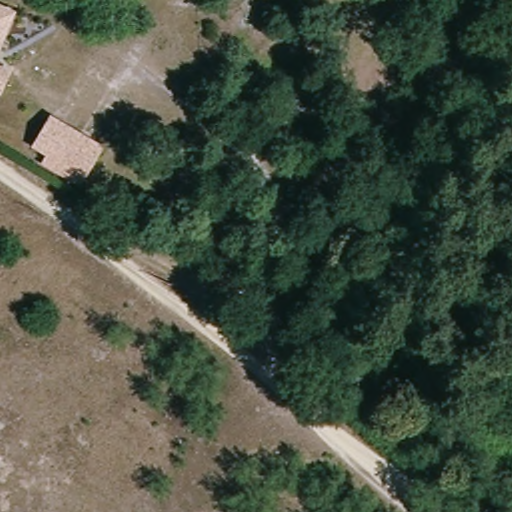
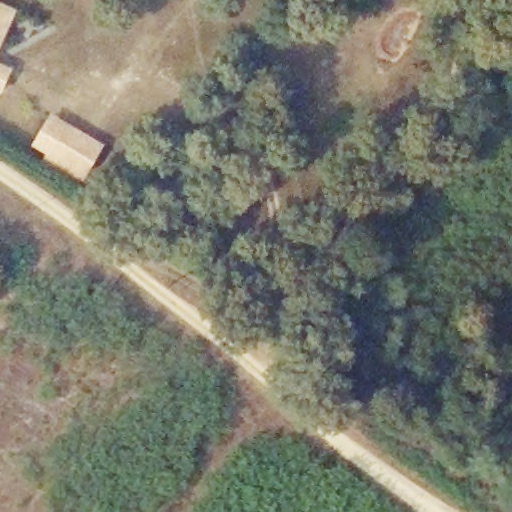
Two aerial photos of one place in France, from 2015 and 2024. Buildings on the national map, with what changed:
unchanged [(20,17),(0,55),(0,7),(20,17)]
unchanged [(16,65),(0,95),(0,57),(16,65)]
unchanged [(40,162),(45,153),(33,145),(50,116),(100,147),(81,175),(76,184),(40,162)]

